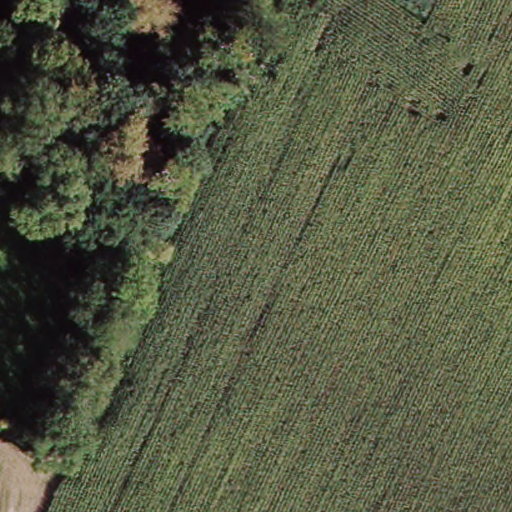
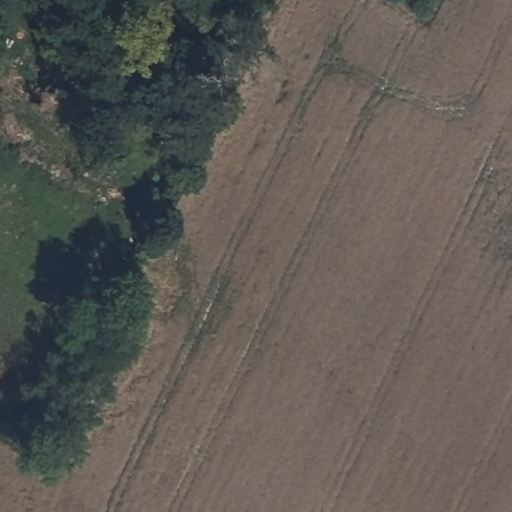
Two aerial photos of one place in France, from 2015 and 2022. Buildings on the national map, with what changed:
[]

